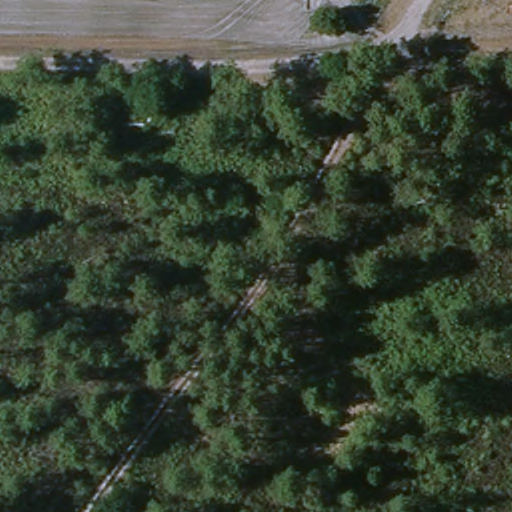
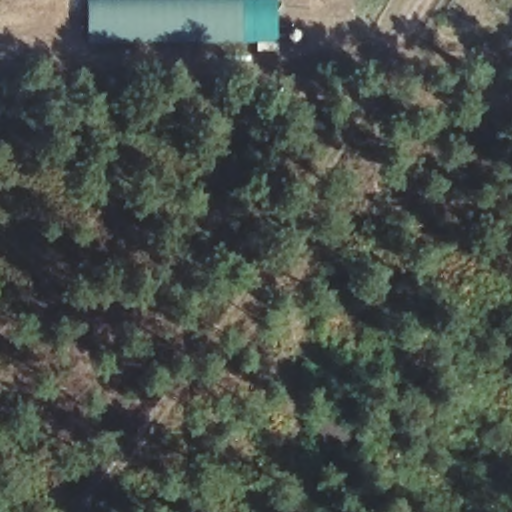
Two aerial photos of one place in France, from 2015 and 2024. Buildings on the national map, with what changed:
new [(91,43),(90,0),(279,0),(279,43),(91,43)]

